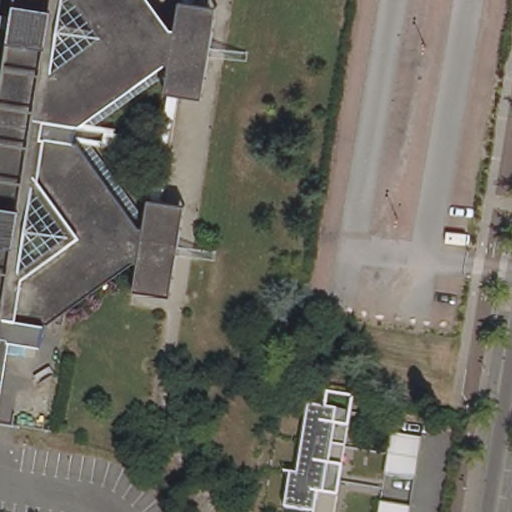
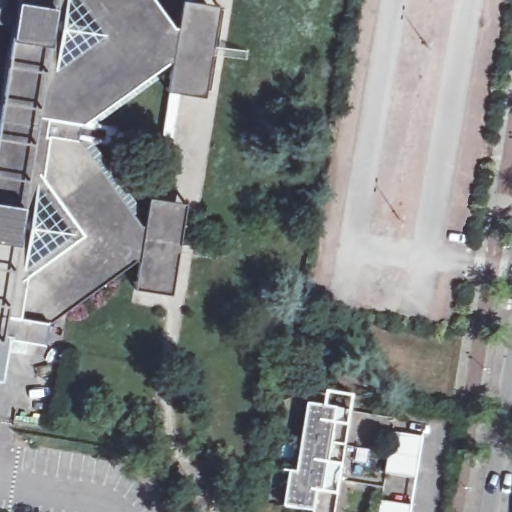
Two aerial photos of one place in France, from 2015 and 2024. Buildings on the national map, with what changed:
unchanged [(13,24),(0,22),(0,0),(158,0),(173,22),(178,23),(182,0),(197,0),(219,3),(205,93),(182,90),(170,88),(167,87),(172,59),(168,59),(167,70),(98,121),(81,118),(78,139),(94,141),(145,213),(143,221),(145,222),(150,194),(152,194),(165,196),(187,200),(172,293),(135,286),(140,258),(136,257),(70,306),(67,302),(58,308),(50,306),(45,339),(12,334),(0,408),(0,108),(13,24)]
unchanged [(152,194),(160,148),(162,137),(170,88),(182,90),(165,196),(152,194)]
unchanged [(115,140),(115,144),(94,141),(78,139),(81,118),(98,121),(118,124),(117,130),(162,137),(160,148),(115,140)]
unchanged [(336,512),(310,512),(285,508),(290,473),(297,474),(308,405),(351,412),(336,512)]
unchanged [(422,477),(390,471),(396,429),(428,434),(422,477)]
unchanged [(416,512),(383,512),(385,501),(417,506),(416,512)]

